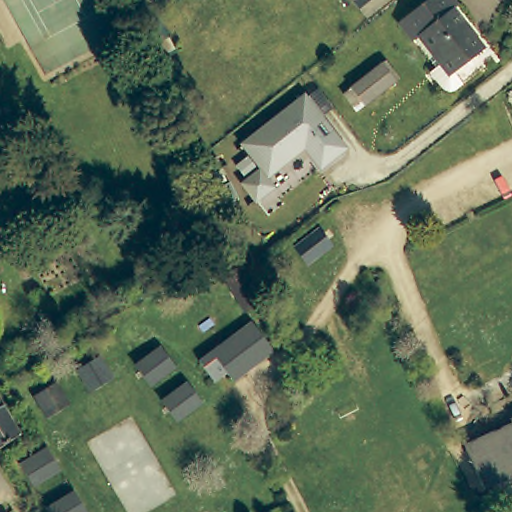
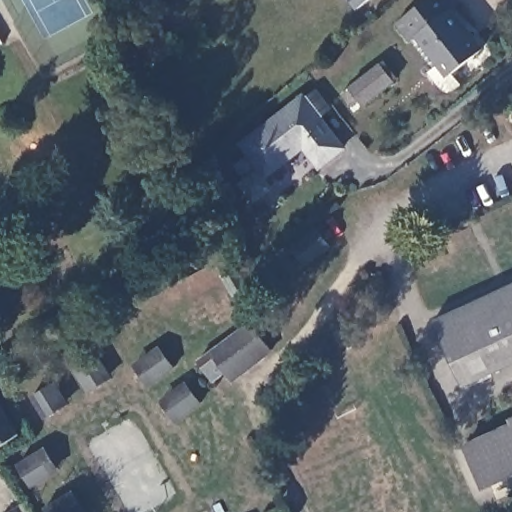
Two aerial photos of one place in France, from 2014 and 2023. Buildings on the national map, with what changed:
unchanged [(348,0),(370,0),(356,10),(348,0)]
unchanged [(411,40),(397,22),(425,0),(453,0),(456,4),(451,8),(485,48),(454,71),(463,83),(455,89),(450,89),(445,87),(440,85),(429,71),(438,63),(416,35),(411,40)]
unchanged [(175,54),(152,66),(135,35),(157,18),(175,54)]
unchanged [(394,80),(355,111),(341,95),(380,63),(394,80)]
unchanged [(320,170),(303,150),(268,177),(275,187),(254,203),(239,182),(244,177),(234,165),(246,155),(238,144),(304,92),(308,95),(316,89),(333,107),(324,115),(349,148),(320,170)]
unchanged [(215,157),(220,166),(209,172),(204,164),(215,157)]
unchanged [(307,268),(289,246),(316,226),(333,248),(307,268)]
unchanged [(222,275),(235,266),(256,301),(243,309),(222,275)]
new [(434,320),(512,284),(512,366),(465,386),(434,320)]
unchanged [(203,358),(256,321),(257,322),(277,351),(236,380),(230,371),(216,378),(208,365),(203,358)]
unchanged [(142,360),(161,347),(176,366),(156,380),(142,360)]
unchanged [(79,372),(99,360),(109,377),(89,390),(79,372)]
unchanged [(33,395),(56,381),(66,398),(43,411),(33,395)]
unchanged [(168,396),(188,383),(201,403),(183,416),(168,396)]
unchanged [(1,404),(0,405),(0,401),(1,404)]
unchanged [(3,407),(19,434),(0,448),(0,405),(1,404),(3,407)]
unchanged [(463,448),(511,426),(509,421),(512,420),(512,477),(482,490),(463,448)]
unchanged [(19,463),(41,450),(54,471),(31,483),(19,463)]
unchanged [(46,507),(67,495),(78,512),(49,512),(46,507)]
demolished [(6,512),(0,512),(4,510),(6,512)]

